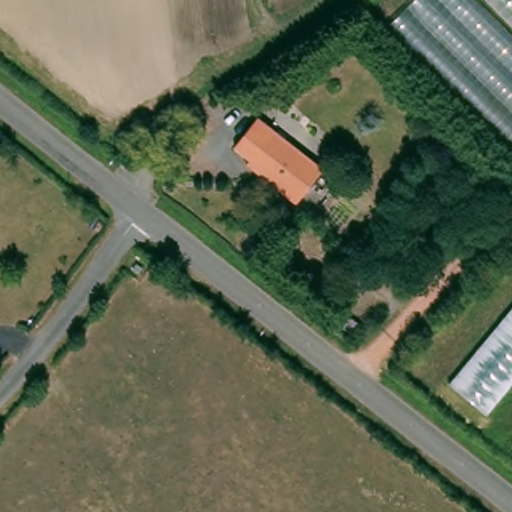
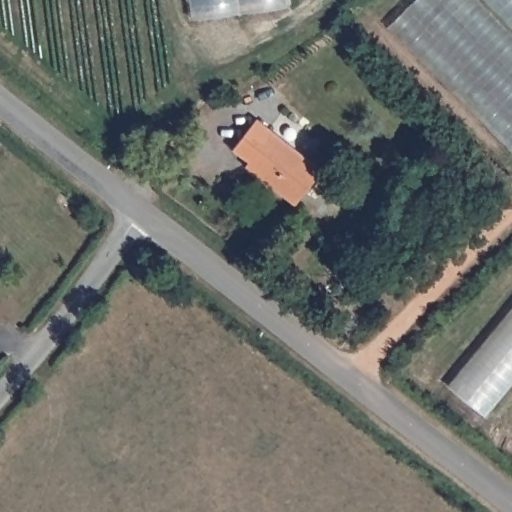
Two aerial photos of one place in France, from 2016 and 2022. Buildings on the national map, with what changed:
new [(190,0),(287,0),(288,5),(192,17),(190,0)]
unchanged [(387,27),(412,0),(512,0),(512,147),(387,27)]
unchanged [(237,148),(262,117),(327,169),(300,204),(257,170),(250,165),(253,161),(237,148)]
unchanged [(512,311),(512,381),(485,413),(451,384),(512,311)]

